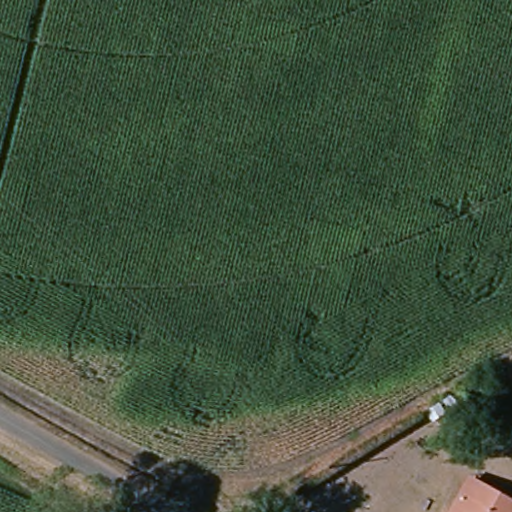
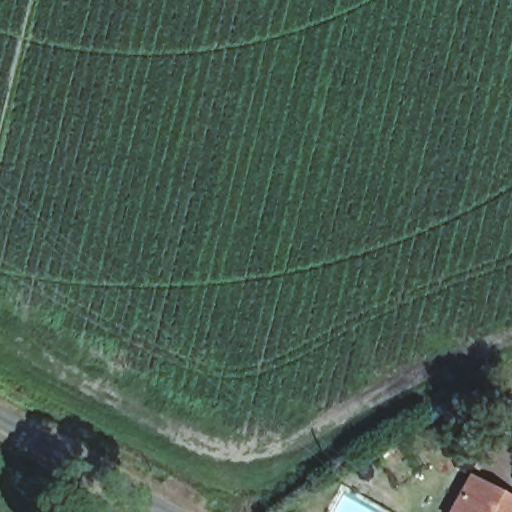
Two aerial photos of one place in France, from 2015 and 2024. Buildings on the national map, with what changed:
unchanged [(454,512),(474,479),(512,500),(512,512),(454,512)]

